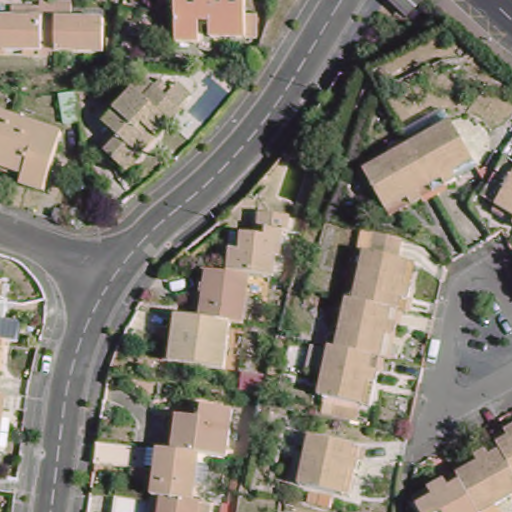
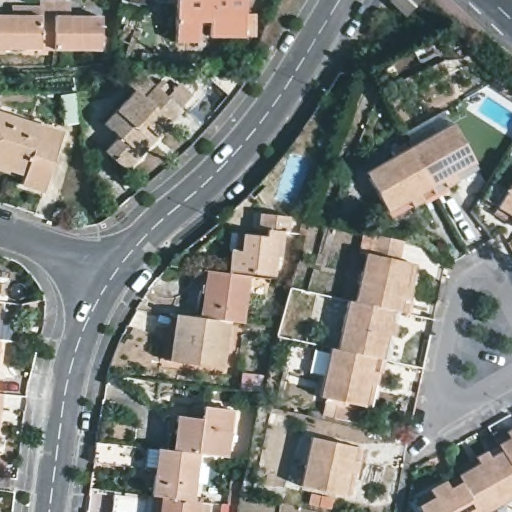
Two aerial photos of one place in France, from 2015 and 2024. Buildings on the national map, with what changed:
unchanged [(55,27),(41,27),(40,48),(0,47),(0,15),(41,15),(41,0),(55,0),(55,27)]
unchanged [(55,27),(55,0),(72,0),(72,15),(103,16),(102,48),(55,48),(55,27)]
unchanged [(240,9),(247,10),(247,31),(203,31),(203,14),(192,13),(191,35),(168,35),(168,0),(240,0),(240,9)]
unchanged [(386,0),(413,0),(400,13),(386,0)]
unchanged [(129,173),(108,153),(122,138),(107,125),(136,92),(145,99),(157,85),(173,100),(183,90),(193,99),(184,109),(160,139),(143,158),(129,173)]
unchanged [(75,92),(80,121),(65,123),(60,94),(75,92)]
unchanged [(62,125),(47,182),(23,175),(23,174),(0,166),(0,106),(62,125)]
unchanged [(477,168),(434,191),(409,147),(452,123),(464,144),(477,168)]
unchanged [(367,170),(409,147),(434,191),(390,215),(367,170)]
unchanged [(512,217),(500,210),(512,189),(512,217)]
unchanged [(285,232),(280,231),(277,255),(272,255),(270,274),(227,269),(230,248),(223,247),(226,229),(240,231),(257,233),(257,227),(259,213),(287,216),(285,232)]
unchanged [(407,260),(397,308),(391,307),(348,299),(360,250),(407,260)]
unchanged [(225,321),(200,317),(208,267),(248,274),(266,277),(262,294),(245,292),(240,323),(225,321)]
unchanged [(348,299),(391,307),(380,356),(375,355),(332,347),(342,297),(348,299)]
unchanged [(200,317),(225,321),(217,367),(165,358),(172,312),(200,317)]
unchanged [(332,347),(375,355),(364,404),(315,394),(325,345),(332,347)]
unchanged [(2,395),(0,409),(0,395),(2,395)]
unchanged [(203,454),(171,449),(173,433),(178,433),(182,416),(196,418),(198,405),(207,407),(235,411),(229,458),(203,454)]
unchanged [(89,453),(92,433),(127,438),(123,459),(89,453)]
unchanged [(498,442),(512,434),(512,466),(502,449),(498,442)]
unchanged [(350,497),(302,486),(312,437),(360,447),(350,497)]
unchanged [(171,449),(203,454),(197,502),(163,497),(155,496),(162,448),(171,449)]
unchanged [(512,503),(496,512),(481,512),(465,483),(460,474),(502,449),(512,466),(512,503)]
unchanged [(424,512),(422,508),(465,483),(481,512),(424,512)]
unchanged [(113,512),(115,494),(145,498),(143,512),(113,512)]
unchanged [(203,503),(202,512),(161,512),(163,497),(197,502),(203,503)]

